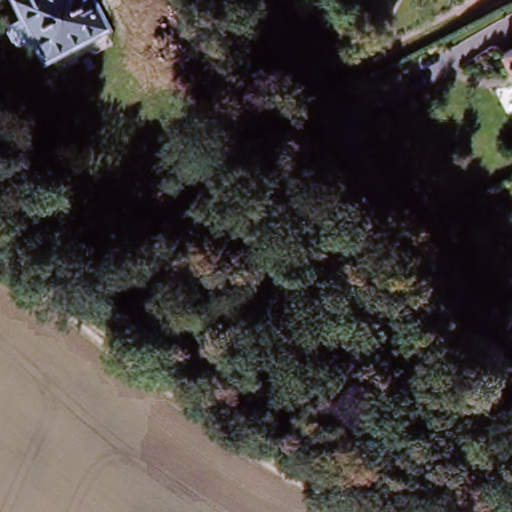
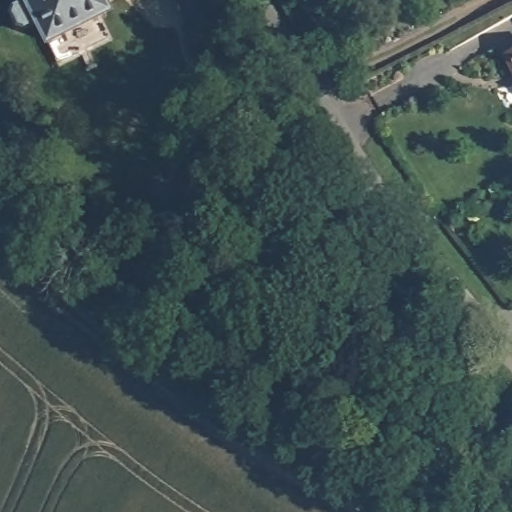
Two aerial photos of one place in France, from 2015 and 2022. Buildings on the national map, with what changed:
unchanged [(56,45),(45,27),(33,32),(30,33),(26,32),(23,29),(22,25),(23,22),(25,18),(37,10),(32,0),(97,0),(107,17),(56,45)]
unchanged [(512,51),(512,83),(500,56),(512,51)]

